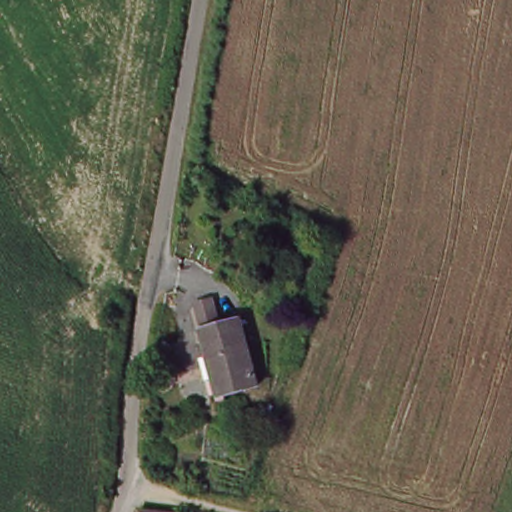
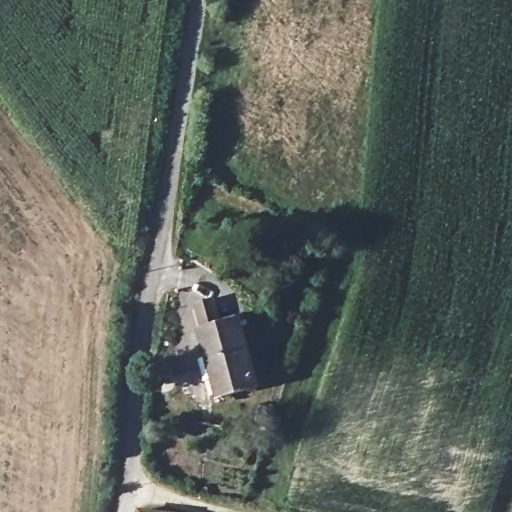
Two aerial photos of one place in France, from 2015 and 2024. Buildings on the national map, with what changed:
unchanged [(225,328),(245,326),(254,393),(211,399),(203,331),(207,331),(204,308),(223,305),(225,328)]

